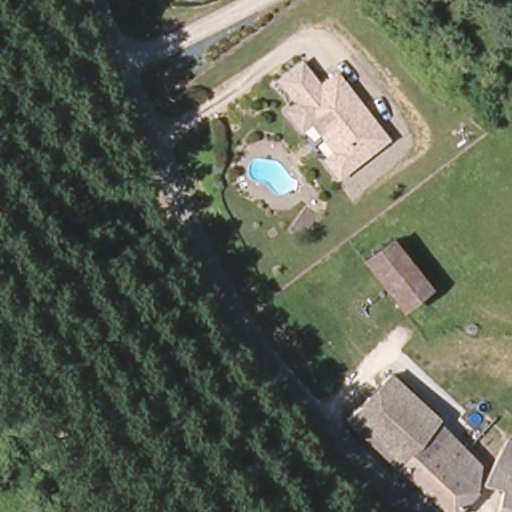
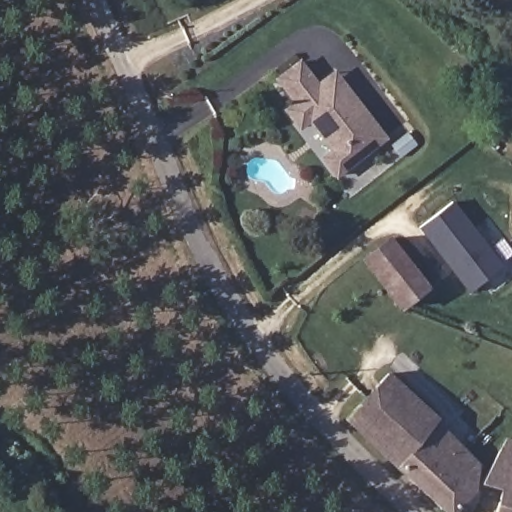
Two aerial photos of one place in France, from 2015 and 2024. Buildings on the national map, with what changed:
unchanged [(336,175),(324,157),(334,149),(311,118),(300,126),(287,108),(297,100),(279,76),(301,59),(319,82),(329,75),(336,70),(354,94),(385,136),(336,175)]
new [(503,267),(468,293),(418,229),(453,202),(503,267)]
unchanged [(401,309),(365,265),(389,242),(425,287),(401,309)]
unchanged [(438,425),(436,427),(481,472),(474,496),(458,512),(438,512),(360,435),(350,423),(390,381),(438,425)]
unchanged [(484,488),(510,446),(512,446),(512,512),(500,512),(505,494),(484,488)]

